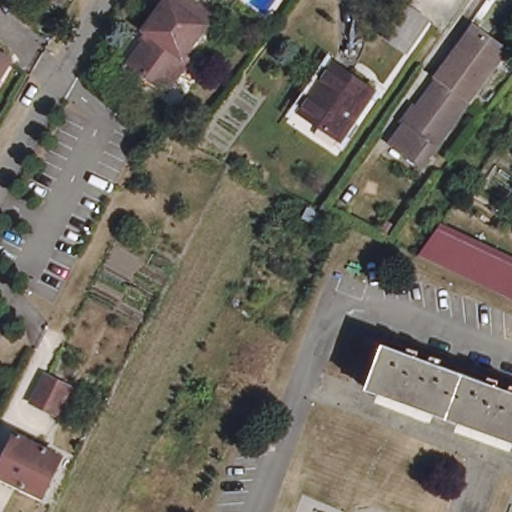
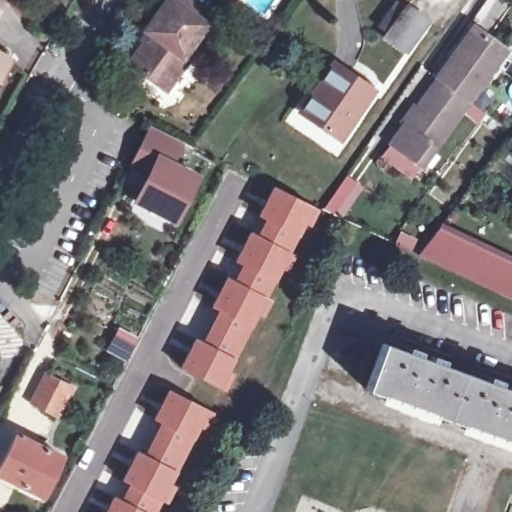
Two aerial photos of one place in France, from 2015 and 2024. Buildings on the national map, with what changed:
unchanged [(59,6),(48,0),(63,0),(59,6)]
unchanged [(179,56),(184,61),(163,90),(125,65),(146,33),(140,28),(159,0),(186,0),(205,12),(198,22),(200,24),(179,56)]
unchanged [(423,20),(402,49),(384,35),(405,7),(423,20)]
unchanged [(414,105),(418,108),(440,78),(437,76),(474,27),(505,50),(421,164),(392,143),(407,123),(402,119),(414,105)]
unchanged [(2,45),(0,48),(0,45),(2,45)]
unchanged [(369,95),(337,141),(301,116),(333,69),(369,95)]
new [(145,175),(126,168),(149,123),(189,140),(179,163),(200,173),(177,225),(132,203),(145,175)]
new [(320,210),(312,225),(305,222),(290,252),(260,237),(270,219),(262,215),(277,188),(320,210)]
unchanged [(442,264),(437,262),(425,256),(432,247),(432,245),(446,228),(512,263),(512,299),(484,285),(442,264)]
new [(246,264),(239,260),(253,232),(260,237),(290,252),(296,255),(288,270),(282,266),(267,297),(237,281),(246,264)]
new [(222,309),(215,305),(230,278),(237,281),(267,297),(272,300),(265,315),(259,312),(243,342),(214,327),(222,309)]
new [(197,340),(205,344),(214,327),(243,342),(227,372),(234,375),(225,390),(183,368),(197,340)]
unchanged [(370,388),(387,342),(491,383),(512,391),(512,442),(490,433),(385,393),(370,388)]
unchanged [(72,384),(59,412),(32,398),(45,371),(72,384)]
new [(214,414),(206,429),(200,425),(185,456),(155,440),(165,423),(157,419),(171,392),(214,414)]
unchanged [(60,455),(40,494),(0,473),(0,462),(15,432),(60,455)]
new [(185,456),(169,486),(175,489),(167,504),(161,501),(132,485),(124,482),(139,454),(146,457),(155,440),(185,456)]
new [(122,503),(132,485),(161,501),(155,512),(108,512),(115,499),(122,503)]

